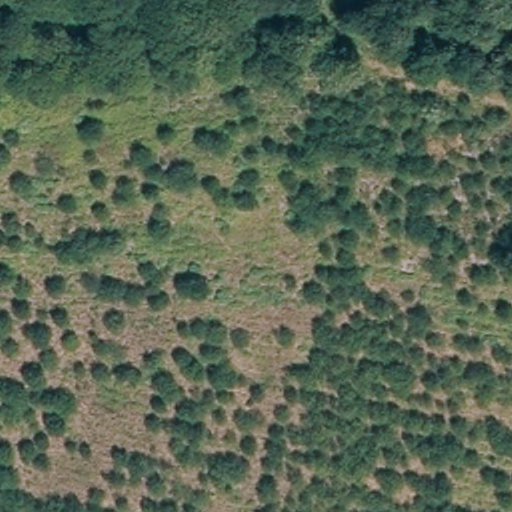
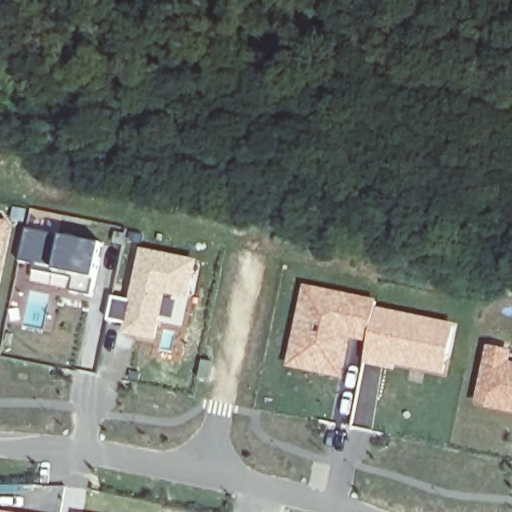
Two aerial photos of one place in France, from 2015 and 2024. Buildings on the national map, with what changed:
new [(0,273),(0,220),(11,222),(0,273)]
new [(19,260),(27,227),(50,233),(101,244),(94,281),(83,279),(82,282),(76,280),(72,292),(62,291),(63,282),(58,282),(56,290),(30,284),(34,263),(19,260)]
new [(194,263),(188,297),(164,292),(154,339),(128,332),(144,255),(194,263)]
new [(302,284),(378,300),(376,307),(367,343),(351,341),(342,380),(285,368),(302,284)]
new [(367,343),(376,307),(456,324),(445,377),(397,368),(396,372),(363,366),(367,343)]
new [(486,345),(512,351),(512,354),(510,361),(512,361),(512,414),(474,406),(486,345)]
new [(0,512),(0,511),(7,512),(0,512)]

